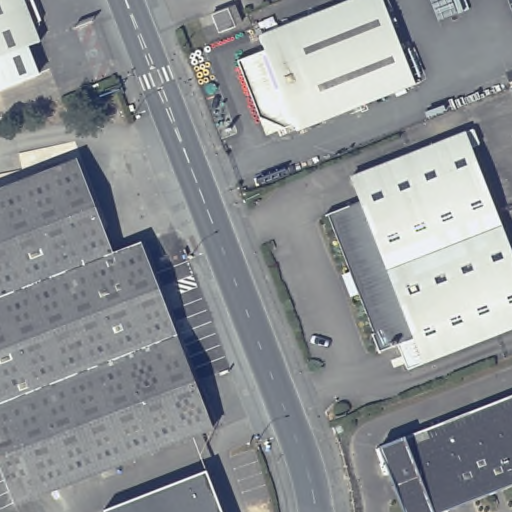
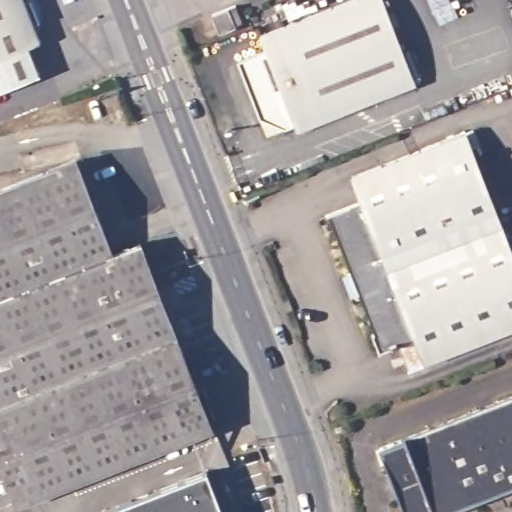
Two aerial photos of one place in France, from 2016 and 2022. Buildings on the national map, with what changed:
unchanged [(34,36),(38,46),(27,51),(38,79),(0,93),(0,0),(23,0),(29,4),(38,26),(34,36)]
unchanged [(259,35),(352,0),(381,0),(382,1),(386,0),(398,0),(415,42),(400,48),(414,84),(297,130),(293,123),(282,127),(265,134),(259,118),(237,60),(264,49),(259,35)]
unchanged [(235,6),(241,24),(238,25),(238,26),(219,33),(212,15),(235,6)]
unchanged [(327,214),(360,200),(350,176),(465,131),(473,129),(479,144),(470,147),(512,252),(512,328),(406,370),(398,346),(378,353),(371,334),(373,333),(358,293),(351,296),(343,275),(349,272),(327,214)]
unchanged [(75,165),(111,258),(138,246),(211,432),(13,509),(0,474),(0,194),(75,165)]
unchanged [(512,485),(442,512),(405,512),(385,461),(381,462),(376,448),(379,447),(512,396),(512,485)]
unchanged [(226,512),(107,512),(106,510),(210,470),(211,472),(226,512)]

